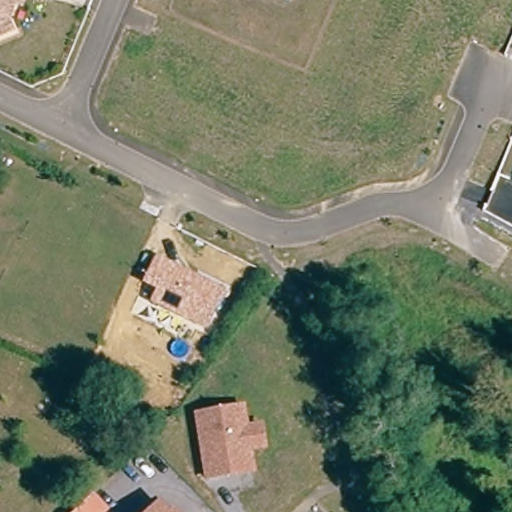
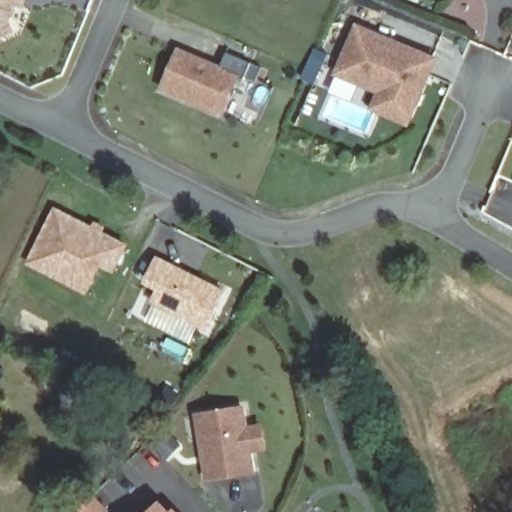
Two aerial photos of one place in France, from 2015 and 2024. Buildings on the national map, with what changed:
unchanged [(26,0),(23,5),(17,3),(9,21),(15,33),(0,38),(0,0),(26,0)]
new [(377,38),(401,48),(436,63),(409,127),(375,112),(382,95),(338,78),(358,29),(377,38)]
new [(181,54),(222,71),(228,56),(253,67),(246,83),(240,80),(224,116),(165,91),(181,54)]
new [(25,264),(54,207),(129,245),(115,274),(101,268),(94,283),(86,295),(25,264)]
unchanged [(212,329),(150,304),(157,289),(144,282),(157,253),(227,288),(212,329)]
unchanged [(206,479),(196,416),(242,409),(245,429),(260,427),(264,449),(249,452),(252,473),(206,479)]
unchanged [(90,498),(104,512),(75,512),(90,498)]
unchanged [(159,511),(160,512),(157,512),(159,511)]

